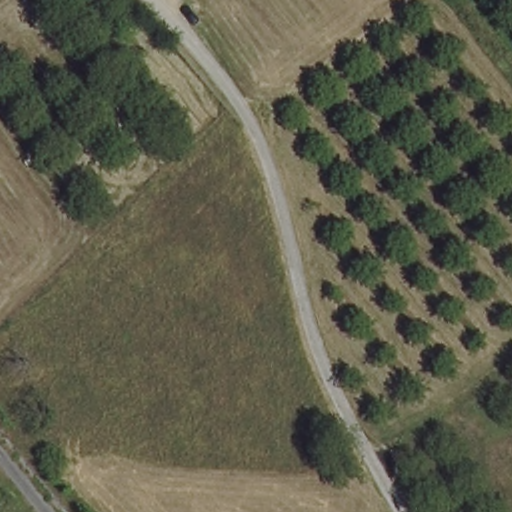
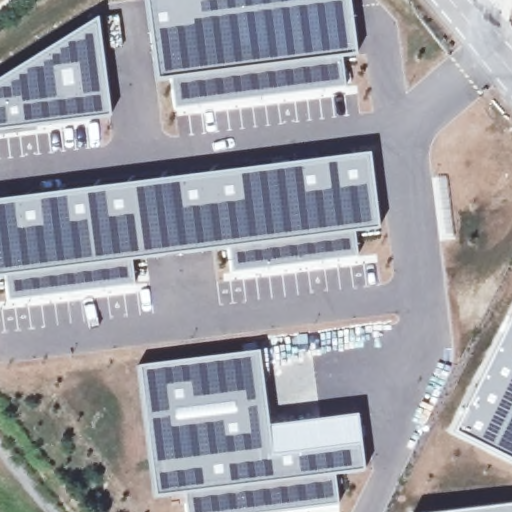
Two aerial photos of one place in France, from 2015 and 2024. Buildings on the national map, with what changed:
new [(343,56),(315,56),(235,66),(170,76),(156,78),(144,0),(350,0),(357,55),(343,56)]
new [(94,17),(95,19),(99,17),(111,115),(34,125),(0,131),(0,75),(94,17)]
new [(235,66),(315,56),(343,56),(346,86),(174,110),(170,76),(235,66)]
new [(370,150),(380,233),(355,234),(317,234),(227,246),(131,258),(44,267),(3,275),(0,276),(0,198),(370,150)]
new [(317,234),(355,234),(359,256),(230,272),(227,246),(317,234)]
new [(44,267),(131,258),(135,285),(7,300),(3,275),(44,267)]
new [(512,462),(451,432),(512,312),(512,462)]
new [(259,349),(269,423),(357,412),(365,470),(335,474),(339,505),(274,512),(186,512),(183,492),(154,496),(136,365),(259,349)]
new [(512,512),(429,512),(512,502),(512,512)]

